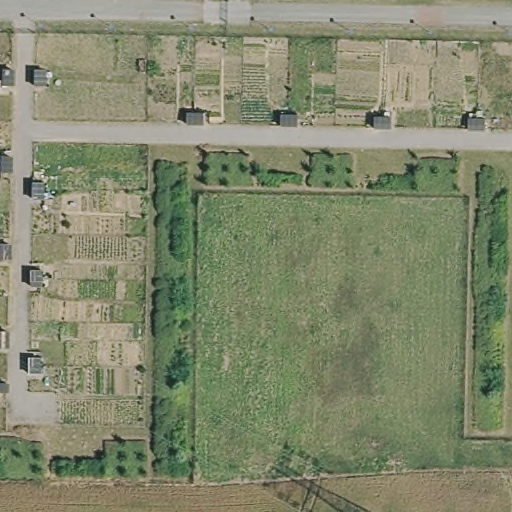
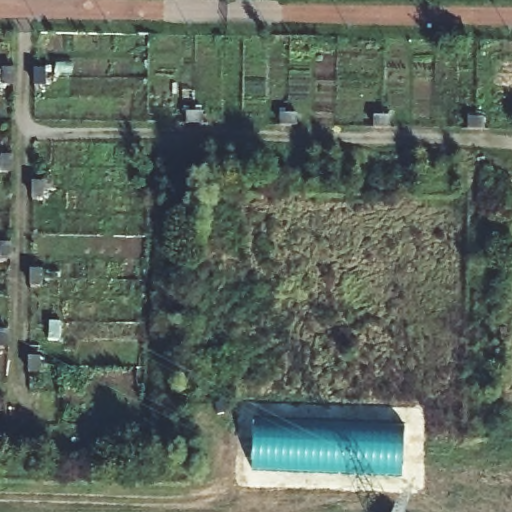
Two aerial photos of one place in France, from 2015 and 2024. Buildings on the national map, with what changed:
new [(402,479),(250,472),(252,416),(404,423),(402,479)]

